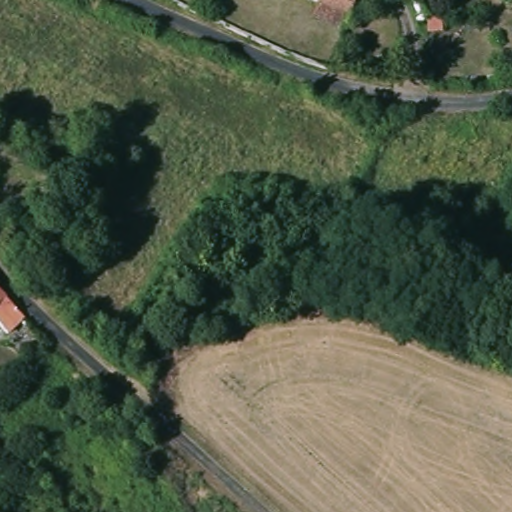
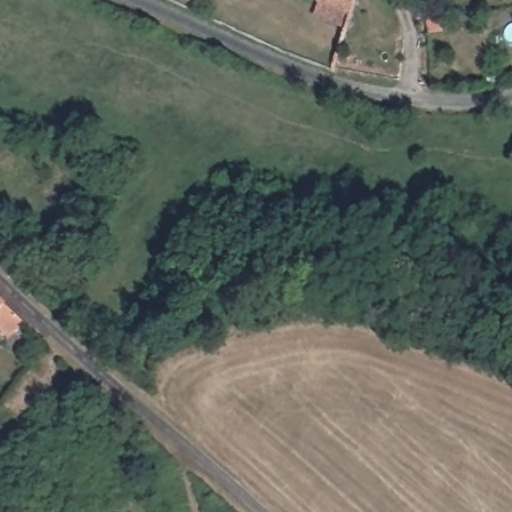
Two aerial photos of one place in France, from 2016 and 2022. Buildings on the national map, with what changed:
unchanged [(322,0),(359,0),(354,14),(322,0)]
unchanged [(24,321),(8,337),(0,328),(0,298),(24,321)]

